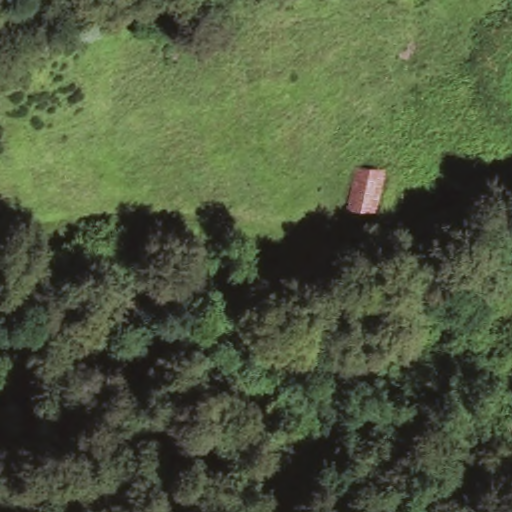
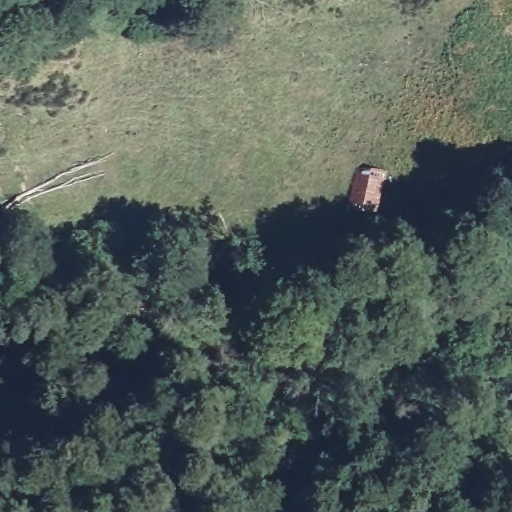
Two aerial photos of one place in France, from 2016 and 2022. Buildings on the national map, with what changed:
unchanged [(345,206),(355,166),(385,172),(376,211),(345,206)]

